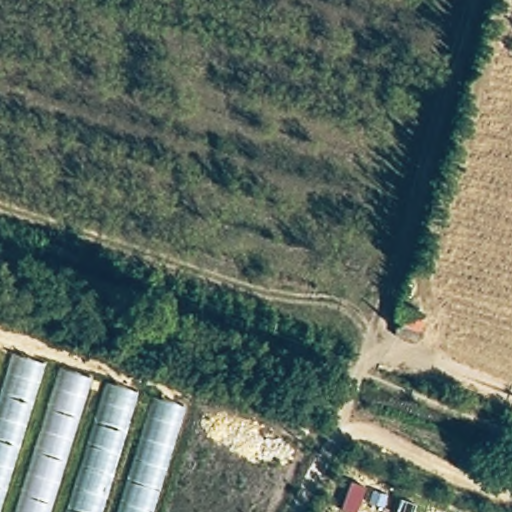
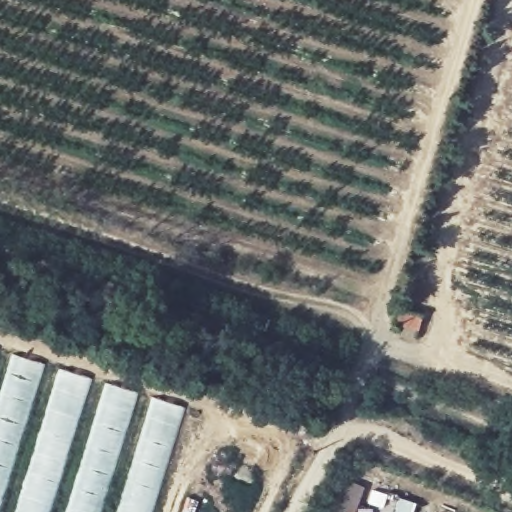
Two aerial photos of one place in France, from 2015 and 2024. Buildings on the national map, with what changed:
unchanged [(398,306),(421,312),(417,338),(390,333),(398,306)]
unchanged [(182,408),(149,512),(0,512),(0,350),(182,408)]

